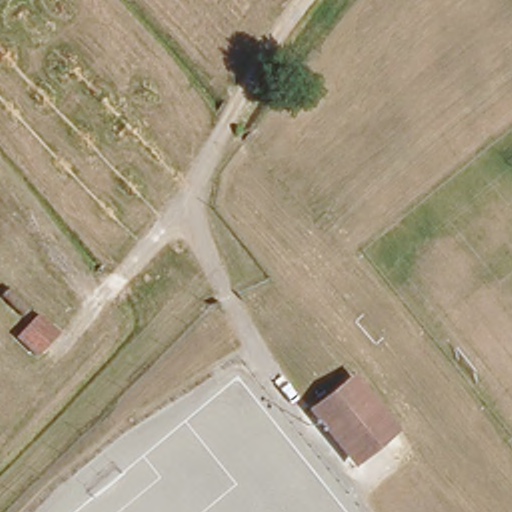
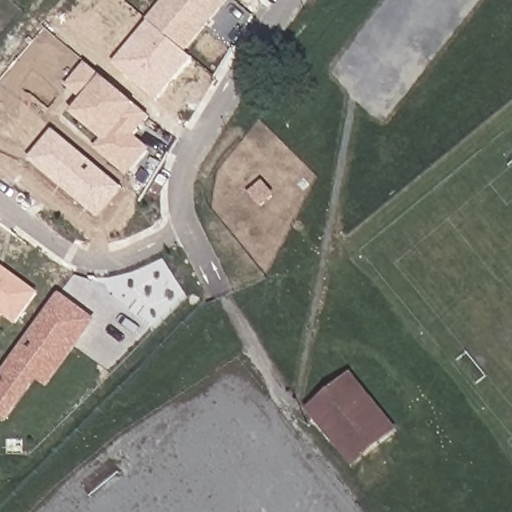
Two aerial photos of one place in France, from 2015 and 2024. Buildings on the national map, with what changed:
new [(187,54),(146,21),(163,0),(230,0),(187,54)]
new [(187,54),(194,59),(156,102),(113,65),(148,23),(187,54)]
new [(135,137),(151,150),(128,177),(97,152),(105,143),(70,114),(81,100),(67,87),(86,65),(150,118),(135,137)]
new [(54,129),(124,189),(99,219),(28,160),(54,129)]
new [(15,326),(3,318),(0,321),(0,265),(40,294),(15,326)]
new [(98,321),(49,389),(39,382),(6,426),(0,421),(0,378),(61,294),(98,321)]
demolished [(35,348),(16,329),(41,304),(61,324),(35,348)]
unchanged [(393,427),(357,455),(352,447),(351,447),(351,448),(328,419),(315,403),(350,374),(362,389),(387,419),(393,427)]

